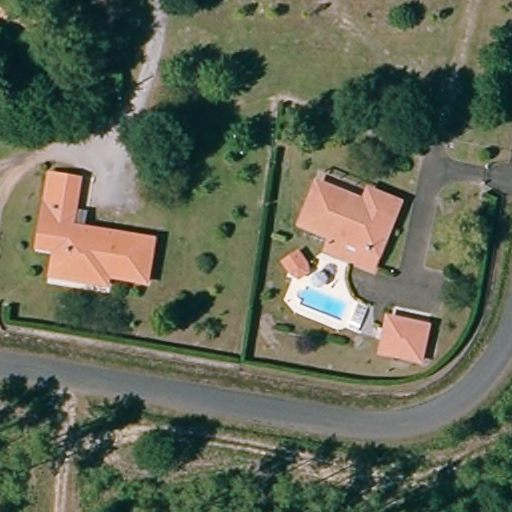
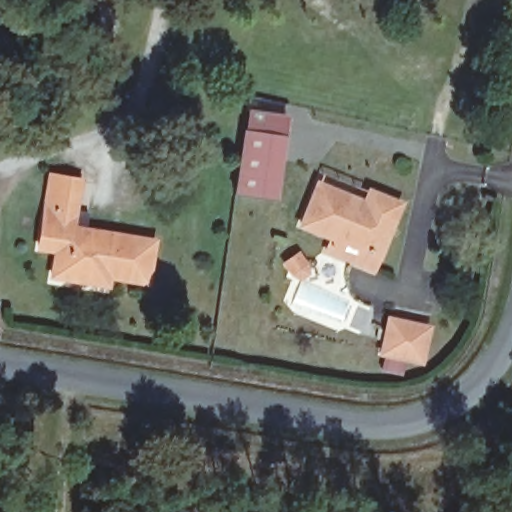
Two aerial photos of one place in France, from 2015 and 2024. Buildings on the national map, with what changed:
new [(290,115),(277,199),(232,193),(246,108),(290,115)]
unchanged [(114,275),(99,272),(95,289),(55,280),(59,260),(64,233),(47,231),(55,180),(82,185),(76,227),(155,243),(147,282),(114,275)]
unchanged [(333,236),(307,225),(323,189),(365,208),(370,197),(380,202),(403,212),(377,275),(358,267),(326,253),(333,236)]
unchanged [(381,350),(387,319),(430,329),(423,360),(381,350)]

